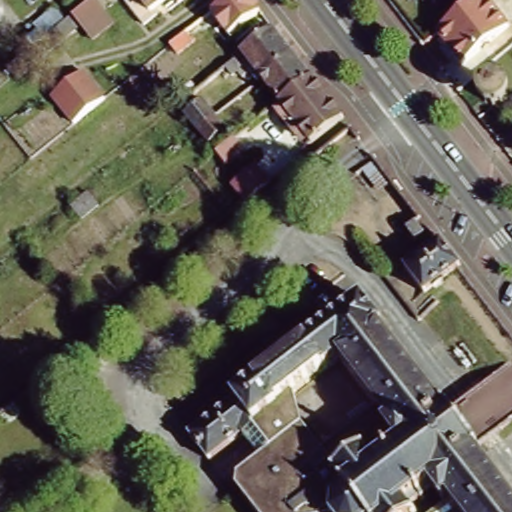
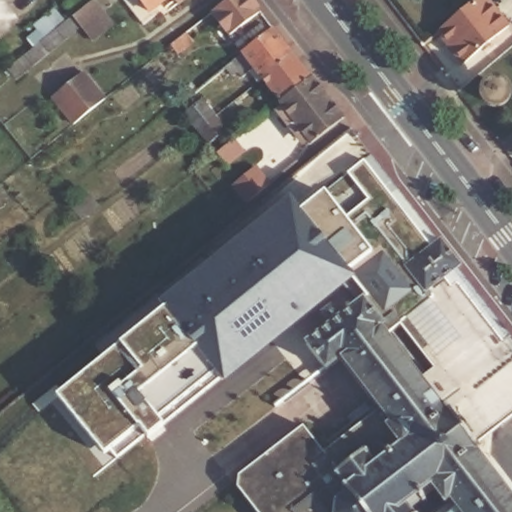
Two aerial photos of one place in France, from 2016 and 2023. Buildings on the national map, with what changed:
unchanged [(139,0),(168,0),(150,14),(139,0)]
unchanged [(251,0),(260,12),(230,37),(217,22),(202,35),(198,31),(188,39),(192,42),(176,56),(170,48),(229,0),(251,0)]
unchanged [(175,3),(173,0),(186,0),(178,7),(175,3)]
unchanged [(465,24),(482,46),(462,62),(437,32),(474,0),(491,0),(492,1),(465,24)]
unchanged [(508,26),(482,46),(465,24),(492,1),(508,26)]
unchanged [(8,71),(73,18),(92,2),(100,11),(80,27),(16,80),(8,71)]
unchanged [(273,29),(294,55),(263,81),(253,68),(242,77),(237,72),(197,97),(195,93),(273,29)]
unchanged [(294,55),(312,77),(281,102),(263,81),(294,55)]
unchanged [(80,77),(102,105),(71,130),(48,102),(80,77)]
unchanged [(312,77),(343,117),(310,143),(310,142),(280,104),(281,102),(312,77)]
unchanged [(206,145),(197,134),(182,115),(200,101),(215,120),(223,131),(206,145)]
unchanged [(232,142),(241,154),(223,167),(215,156),(232,142)]
new [(402,263),(421,288),(455,262),(457,260),(462,266),(430,291),(437,299),(403,327),(400,322),(393,328),(370,297),(355,282),(225,387),(219,381),(164,425),(148,437),(118,459),(112,450),(105,455),(57,397),(120,345),(163,311),(160,306),(290,199),(300,212),(325,191),(347,173),(365,160),(428,242),(402,263)]
new [(252,167),(266,185),(242,204),(228,186),(252,167)]
unchanged [(438,235),(457,260),(455,262),(421,288),(402,263),(436,237),(438,235)]
unchanged [(241,493),(245,482),(287,451),(272,430),(221,469),(196,437),(308,351),(305,347),(331,327),(323,317),(336,307),(344,317),(370,297),(398,336),(395,338),(445,403),(448,401),(492,457),(488,460),(512,491),(512,512),(450,512),(445,506),(436,512),(255,512),(241,493)]

